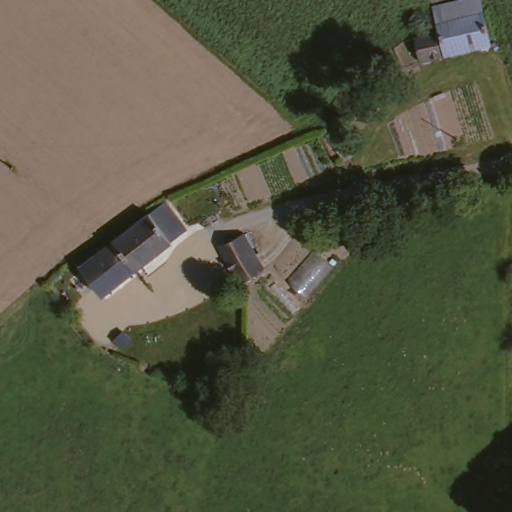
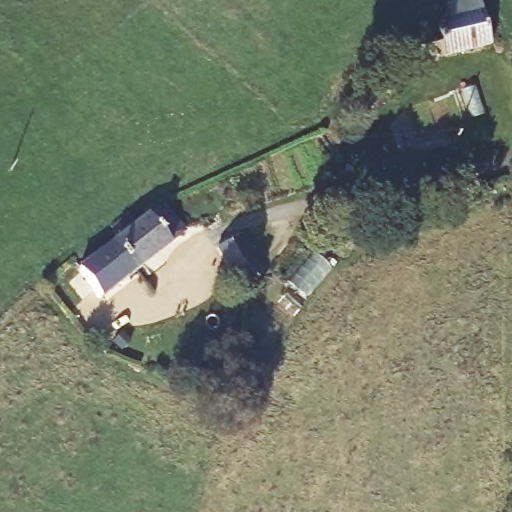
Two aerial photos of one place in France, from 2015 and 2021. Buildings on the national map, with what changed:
unchanged [(430,49),(441,40),(440,35),(436,29),(437,29),(472,6),(490,30),(495,36),(493,37),(437,75),(423,55),(430,49)]
unchanged [(155,209),(178,236),(162,248),(164,250),(100,304),(75,277),(155,209)]
unchanged [(249,234),(270,274),(245,288),(222,250),(249,234)]

